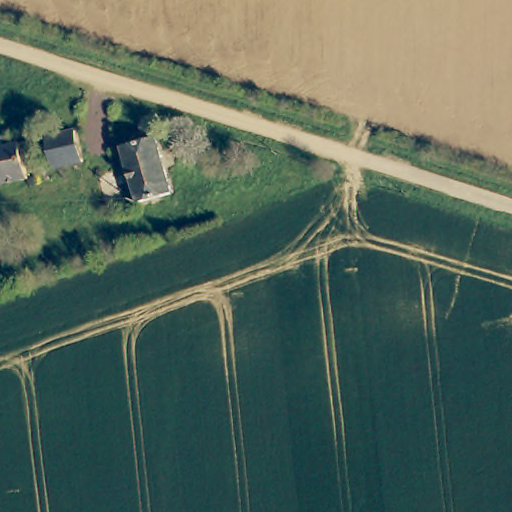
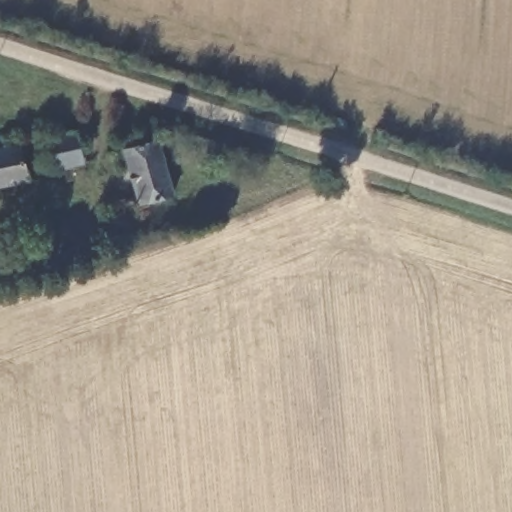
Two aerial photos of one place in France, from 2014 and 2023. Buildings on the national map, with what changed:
unchanged [(54,169),(46,139),(77,132),(84,162),(54,169)]
unchanged [(6,148),(21,145),(31,179),(0,187),(0,136),(2,135),(6,148)]
unchanged [(140,204),(124,149),(157,139),(172,195),(140,204)]

